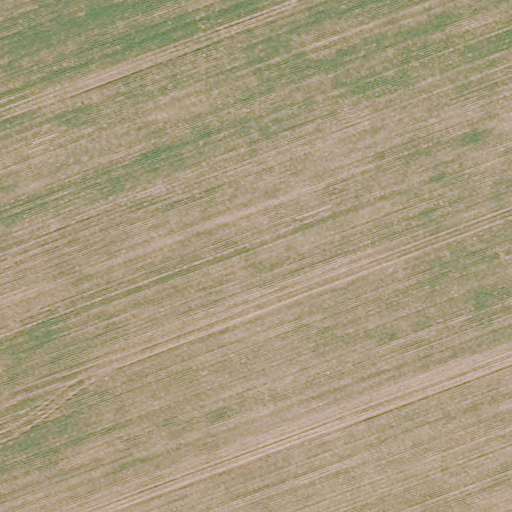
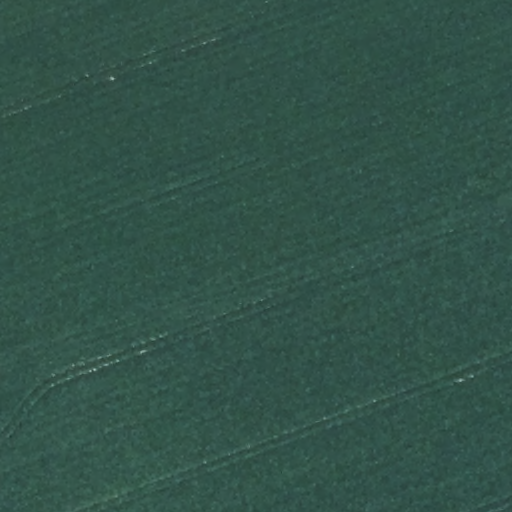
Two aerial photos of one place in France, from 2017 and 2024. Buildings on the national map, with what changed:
[]

